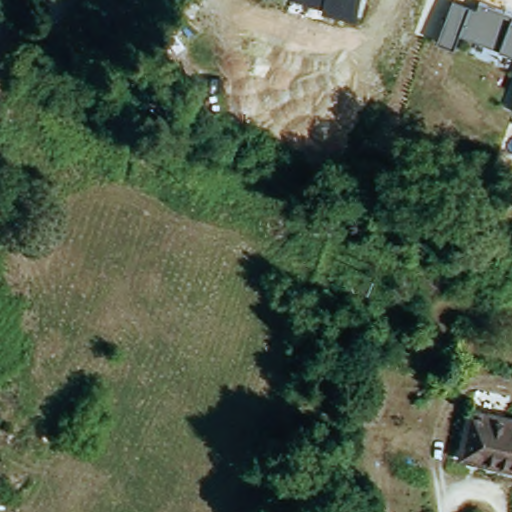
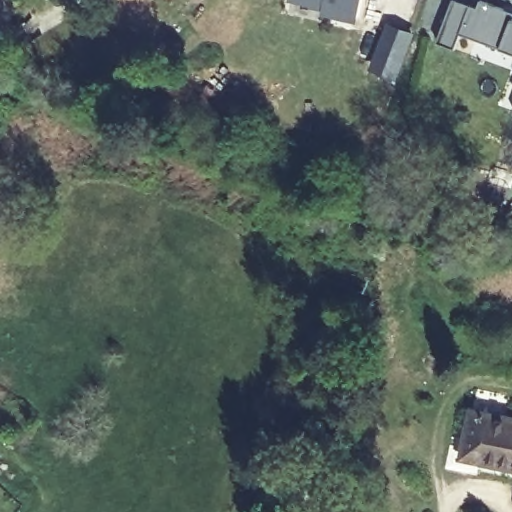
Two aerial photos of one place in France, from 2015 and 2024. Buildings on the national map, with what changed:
unchanged [(289,0),(362,0),(358,17),(289,0)]
unchanged [(502,47),(461,33),(457,48),(439,42),(454,0),(464,0),(479,5),(481,0),(486,0),(512,10),(512,50),(502,47)]
new [(388,22),(416,33),(398,80),(371,69),(388,22)]
unchanged [(512,415),(512,471),(471,460),(458,457),(459,449),(471,404),(512,415)]

